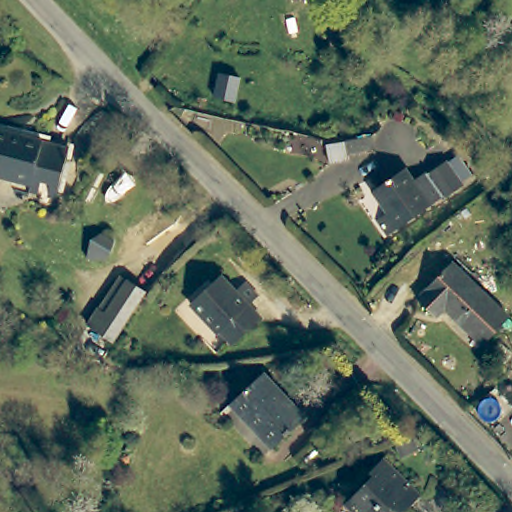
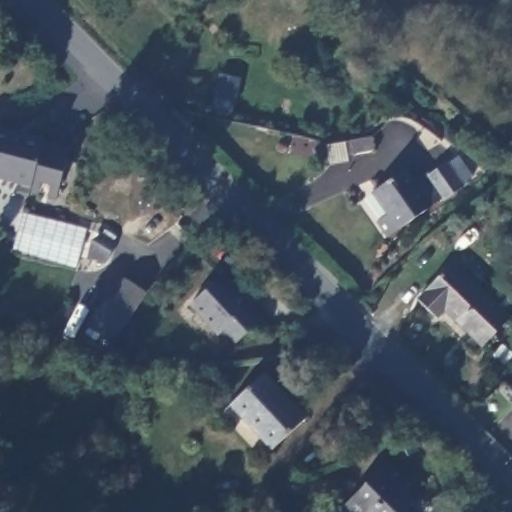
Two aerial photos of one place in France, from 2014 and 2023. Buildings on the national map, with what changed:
unchanged [(294,0),(302,0),(294,2),(294,0)]
new [(221,74),(241,78),(237,101),(217,98),(221,74)]
unchanged [(59,198),(31,193),(32,183),(0,178),(0,131),(67,141),(59,198)]
unchanged [(371,136),(374,149),(347,154),(345,143),(371,136)]
unchanged [(388,235),(377,218),(386,212),(372,191),(405,168),(414,179),(425,171),(427,173),(444,160),(462,185),(444,198),(443,196),(388,235)]
new [(20,213),(84,229),(74,269),(10,252),(20,213)]
unchanged [(99,259),(111,234),(124,242),(118,260),(99,259)]
unchanged [(482,344),(445,309),(436,318),(417,299),(453,263),(499,309),(512,296),(512,322),(508,317),(482,344)]
unchanged [(228,342),(216,329),(213,332),(184,304),(214,274),(229,289),(238,279),(251,293),(242,302),(256,314),(228,342)]
unchanged [(108,340),(85,324),(97,307),(102,310),(124,279),(142,291),(108,340)]
unchanged [(305,418),(273,449),(231,404),(262,373),(293,405),(305,418)]
unchanged [(350,500),(379,474),(376,470),(389,457),(424,496),(406,512),(360,512),(350,500)]

